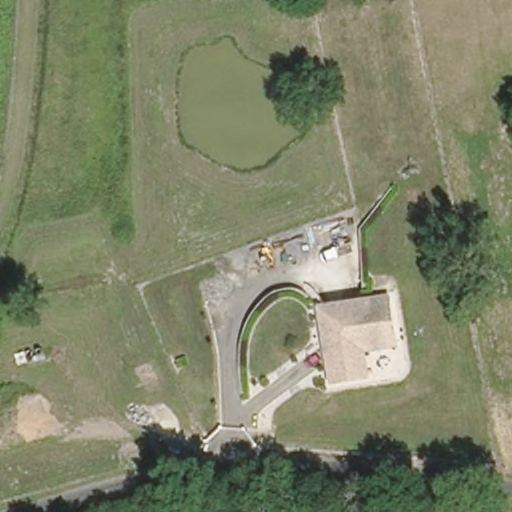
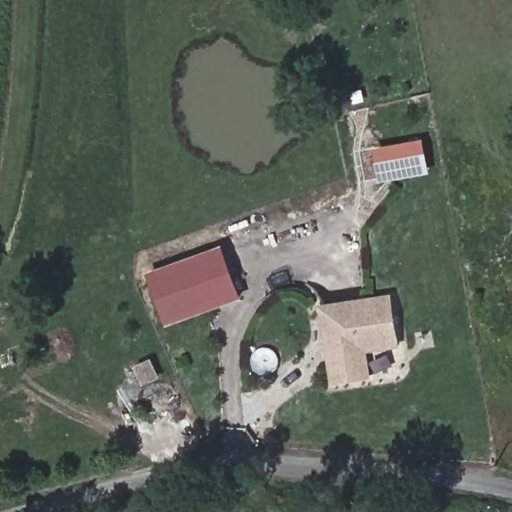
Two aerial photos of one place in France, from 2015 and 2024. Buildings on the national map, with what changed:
new [(382,182),(375,149),(424,139),(431,172),(382,182)]
new [(242,300),(167,327),(149,273),(224,246),(233,273),(242,300)]
unchanged [(368,352),(371,379),(333,385),(321,307),(395,297),(401,347),(368,352)]

